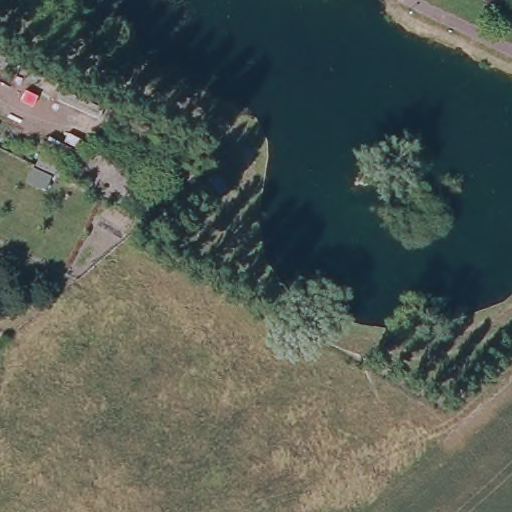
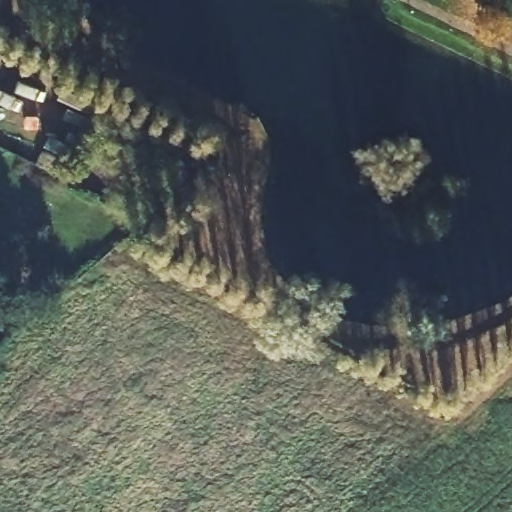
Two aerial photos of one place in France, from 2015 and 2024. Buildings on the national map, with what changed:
unchanged [(3,56),(0,62),(0,54),(3,56)]
unchanged [(50,174),(44,188),(26,179),(33,166),(50,174)]

